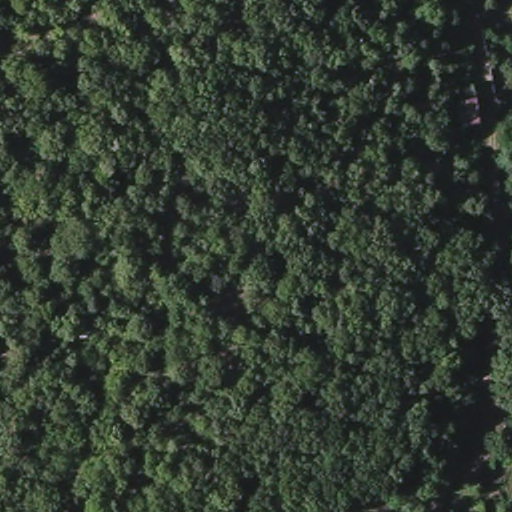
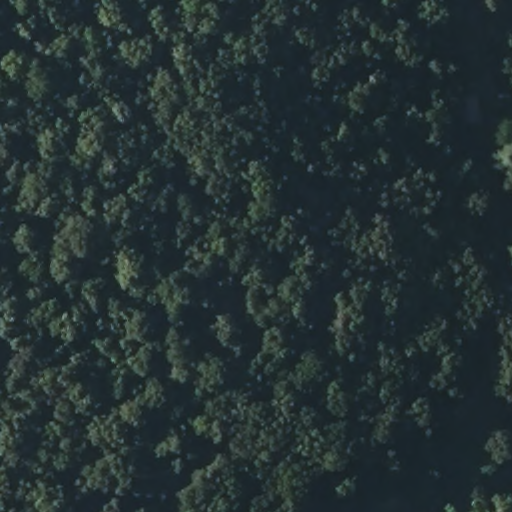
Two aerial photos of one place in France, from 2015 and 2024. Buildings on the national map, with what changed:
unchanged [(476,92),(482,126),(463,129),(460,112),(464,111),(461,94),(476,92)]

